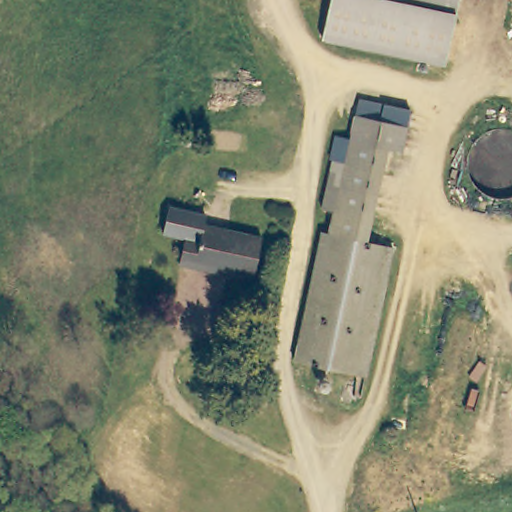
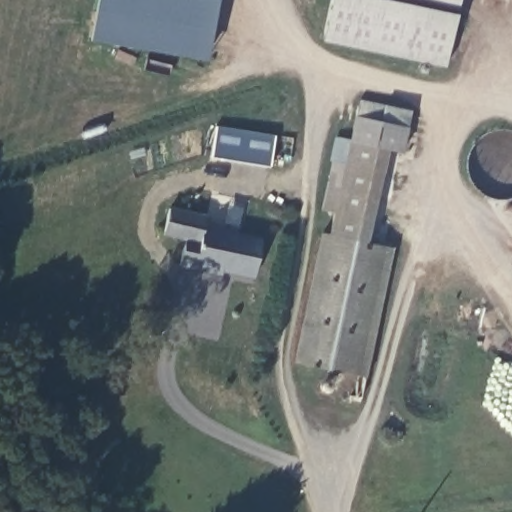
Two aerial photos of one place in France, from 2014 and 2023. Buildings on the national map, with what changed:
new [(89,40),(95,0),(215,0),(207,60),(89,40)]
unchanged [(444,69),(322,40),(330,0),(460,0),(455,21),(444,69)]
unchanged [(394,246),(369,375),(308,364),(330,234),(335,235),(340,212),(327,209),(336,162),(340,139),(353,141),(358,116),(411,125),(408,150),(390,148),(373,242),(394,246)]
unchanged [(257,278),(203,269),(202,273),(185,270),(189,244),(169,241),(168,240),(169,234),(173,215),(210,222),(209,232),(263,240),(257,278)]

